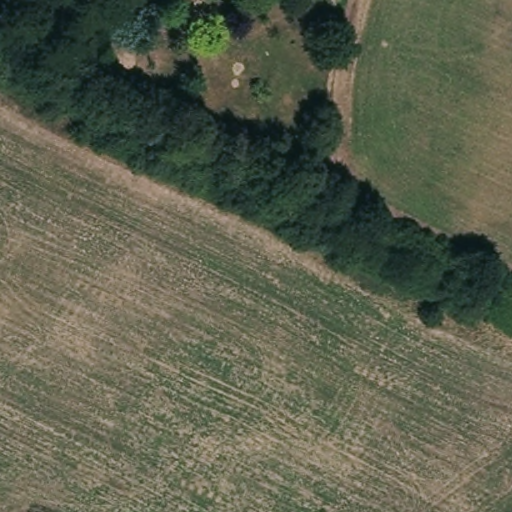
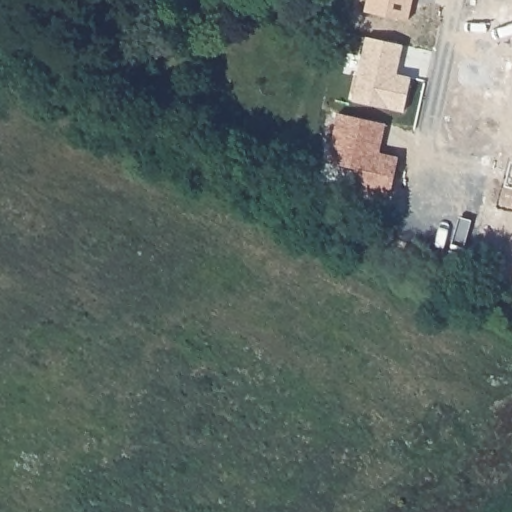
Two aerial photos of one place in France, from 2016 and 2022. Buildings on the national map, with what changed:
new [(368,0),(414,0),(410,22),(365,13),(368,0)]
new [(368,37),(405,45),(400,72),(413,75),(406,112),(354,101),(368,37)]
new [(340,113),(388,123),(381,152),(401,156),(392,196),(355,187),(359,168),(329,161),(340,113)]

